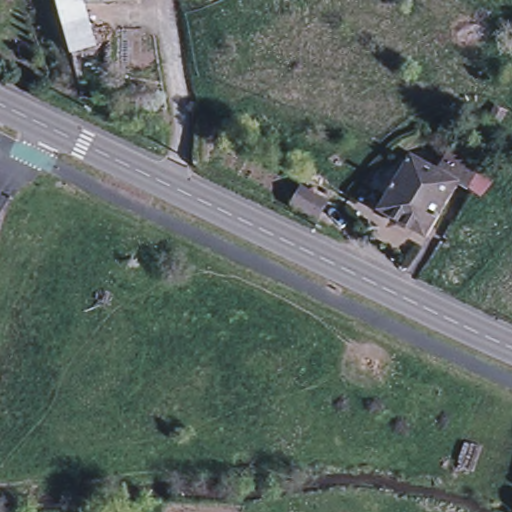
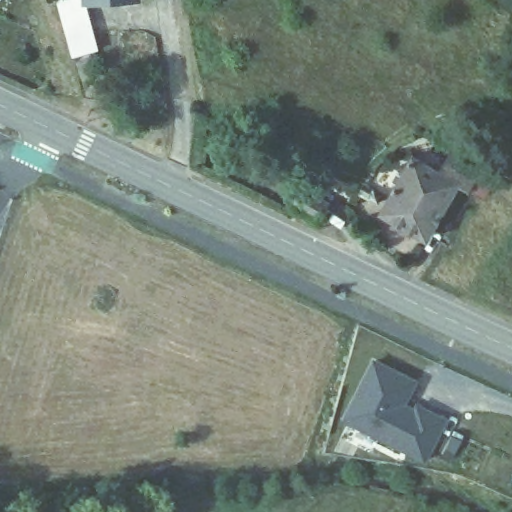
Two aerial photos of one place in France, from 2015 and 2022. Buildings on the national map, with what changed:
unchanged [(380,213),(415,159),(441,175),(447,164),(437,157),(441,152),(450,158),(455,152),(485,170),(471,193),(461,187),(426,242),(380,213)]
unchanged [(381,197),(376,205),(358,194),(363,186),(381,197)]
unchanged [(304,191),(327,205),(317,221),(293,207),(304,191)]
unchanged [(369,241),(360,232),(369,222),(378,231),(369,241)]
new [(417,382),(407,403),(414,407),(416,403),(447,418),(426,462),(343,418),(373,358),(417,382)]

